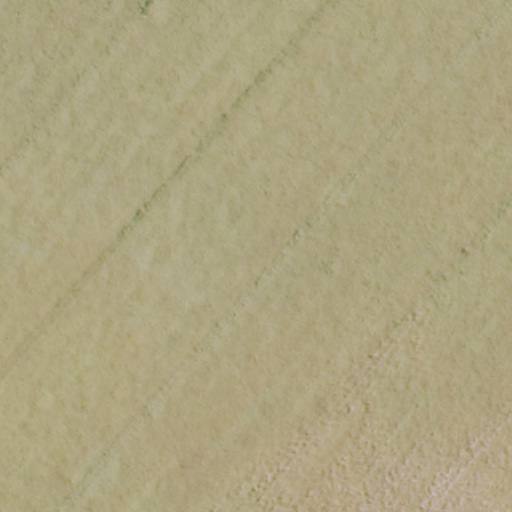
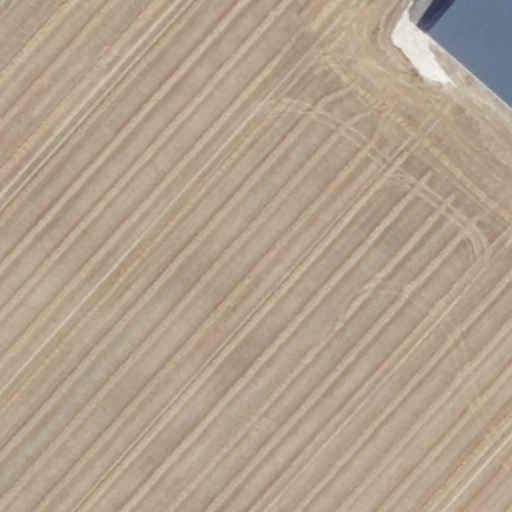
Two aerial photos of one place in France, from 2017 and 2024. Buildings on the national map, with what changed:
new [(455,0),(512,0),(512,120),(422,39),(455,0)]

